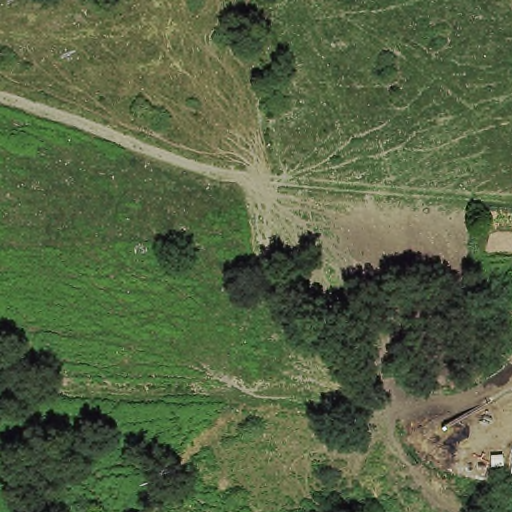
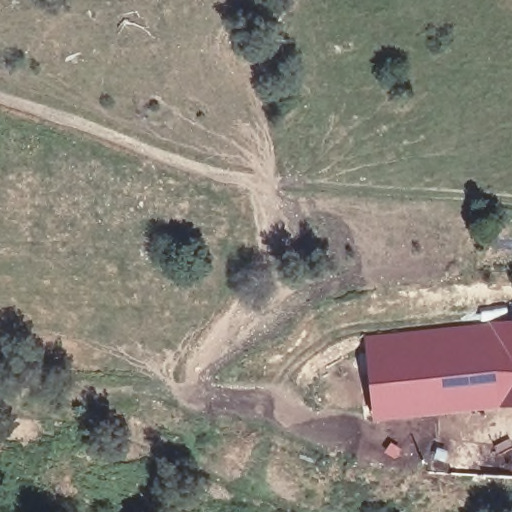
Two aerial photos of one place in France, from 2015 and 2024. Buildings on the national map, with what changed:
new [(501,410),(375,423),(365,335),(489,322),(512,324),(512,412),(501,410)]

